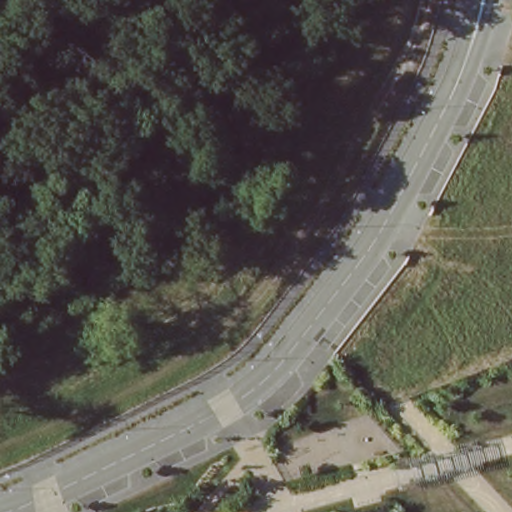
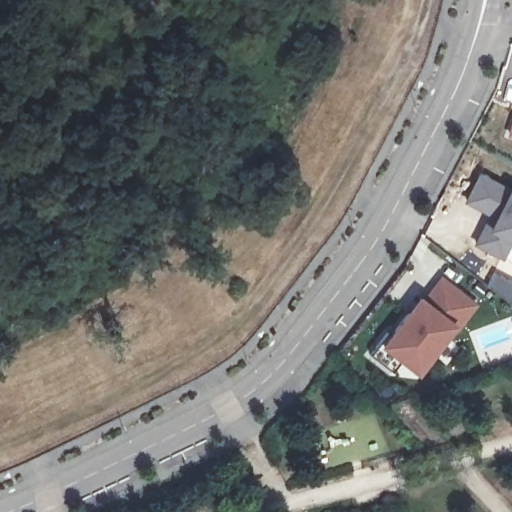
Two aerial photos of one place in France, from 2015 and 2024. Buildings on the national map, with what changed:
new [(508,139),(512,128),(512,141),(508,139)]
new [(512,190),(512,247),(505,263),(475,248),(490,219),(465,205),(481,174),(512,190)]
new [(392,335),(409,312),(420,298),(424,300),(442,277),(477,303),(458,328),(455,325),(419,373),(402,360),(393,372),(371,354),(388,332),(392,335)]

